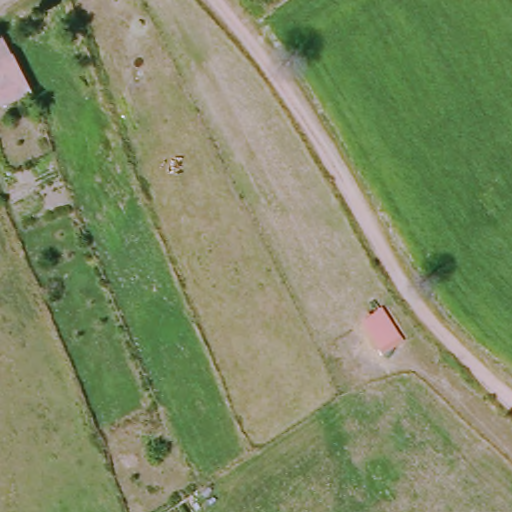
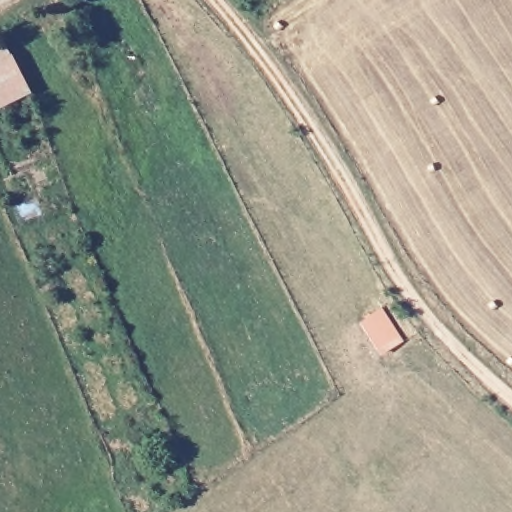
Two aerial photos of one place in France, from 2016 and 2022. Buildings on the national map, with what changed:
unchanged [(20,82),(0,91),(0,46),(4,44),(20,82)]
unchanged [(383,349),(362,325),(379,310),(400,334),(383,349)]

